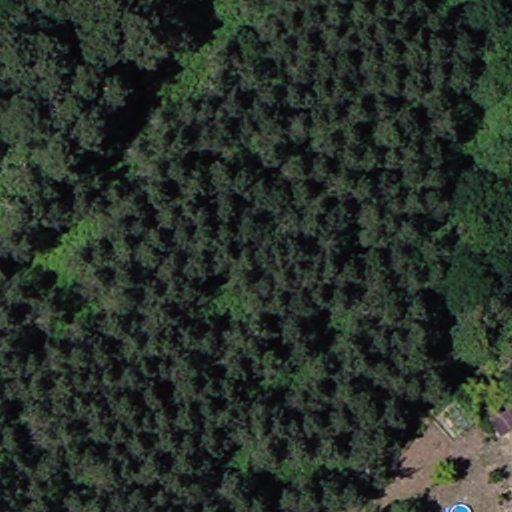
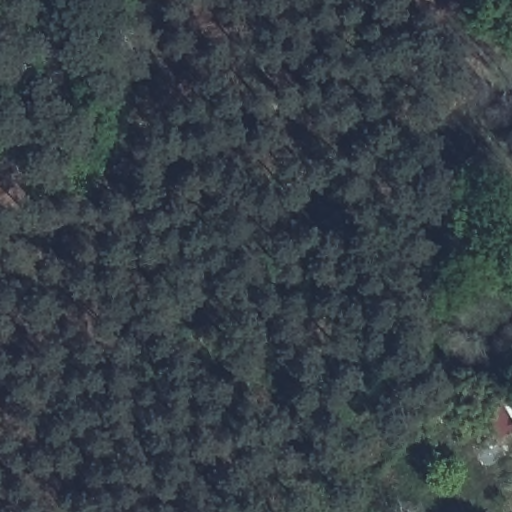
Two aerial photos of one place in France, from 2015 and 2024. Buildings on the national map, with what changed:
unchanged [(512,414),(504,402),(512,396),(512,414)]

